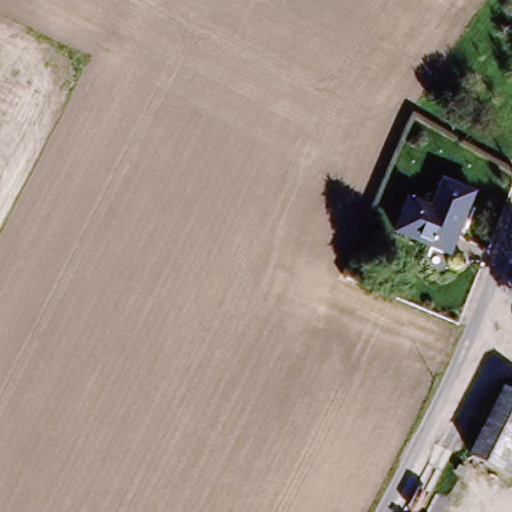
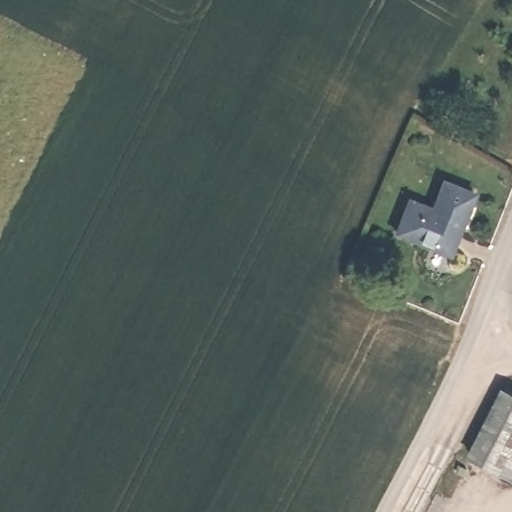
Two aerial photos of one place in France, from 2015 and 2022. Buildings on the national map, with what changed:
unchanged [(448,255),(396,231),(410,199),(432,209),(444,181),(474,195),(448,255)]
unchanged [(499,389),(512,395),(512,464),(502,482),(460,460),(499,389)]

